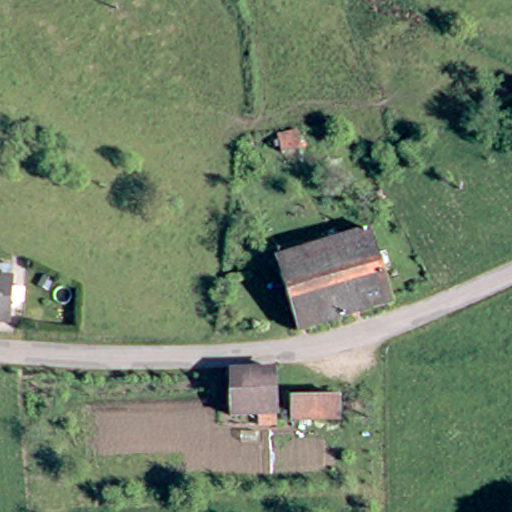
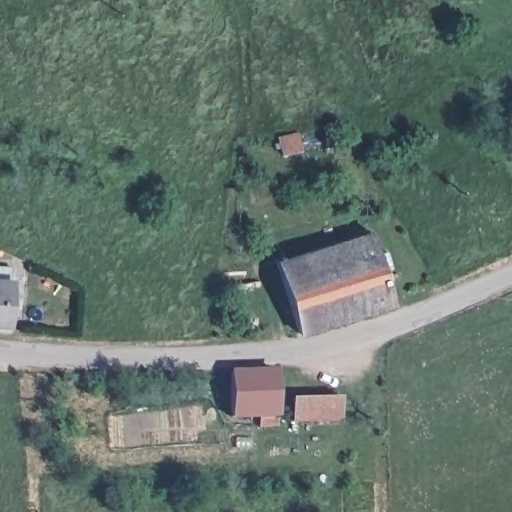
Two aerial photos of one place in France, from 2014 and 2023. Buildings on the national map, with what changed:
unchanged [(279,152),(277,137),(297,134),(300,149),(279,152)]
unchanged [(281,261),(374,232),(397,301),(304,332),(281,261)]
unchanged [(16,273),(13,328),(0,327),(0,272),(16,273)]
unchanged [(282,424),(266,424),(266,417),(239,417),(238,371),(282,369),(282,424)]
unchanged [(347,417),(298,418),(299,395),(346,395),(347,417)]

